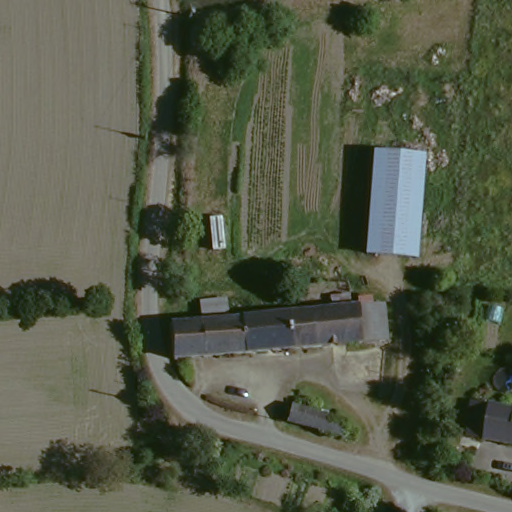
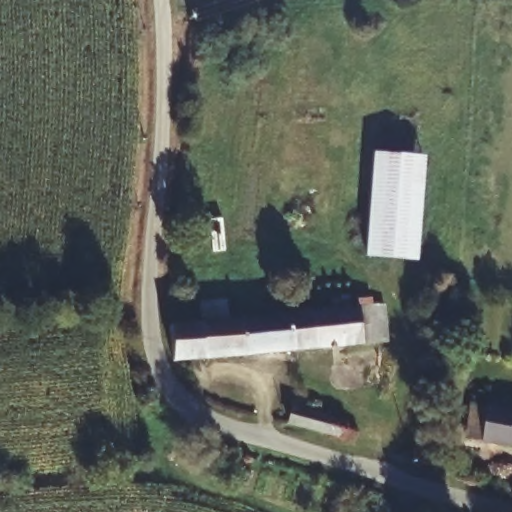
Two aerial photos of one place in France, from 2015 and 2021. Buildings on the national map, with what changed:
unchanged [(376,154),(428,158),(419,260),(367,255),(376,154)]
unchanged [(195,304),(220,301),(222,320),(353,307),(377,304),(381,342),(356,345),(166,360),(164,332),(162,324),(196,323),(195,304)]
unchanged [(505,447),(478,442),(463,440),(468,403),(471,403),(483,406),(511,410),(505,447)]
unchanged [(292,423),(295,408),(352,423),(350,431),(363,433),(360,441),(348,437),(292,423)]
unchanged [(511,410),(512,410),(512,447),(505,447),(511,410)]

